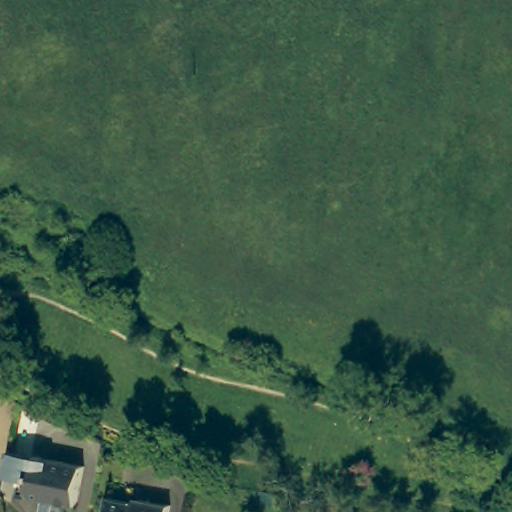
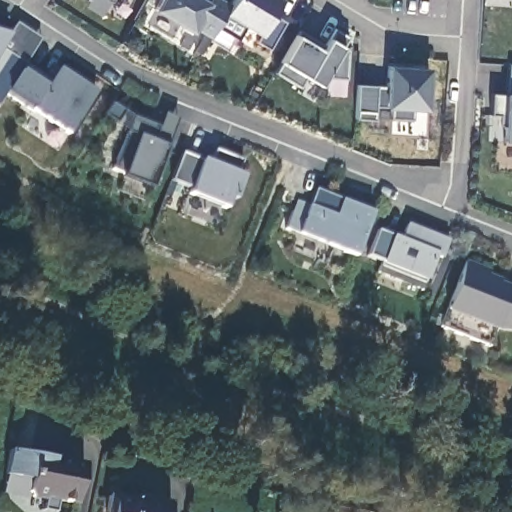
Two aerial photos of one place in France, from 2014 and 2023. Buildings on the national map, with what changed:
new [(112,0),(110,2),(107,0),(112,0)]
new [(208,0),(219,0),(224,3),(227,0),(281,0),(273,14),(285,22),(269,50),(256,42),(260,37),(259,35),(223,14),(208,38),(193,27),(190,33),(152,10),(158,0),(203,0),(207,2),(208,0)]
new [(9,34),(0,46),(51,79),(59,67),(95,92),(67,135),(8,95),(0,102),(0,28),(9,34)]
new [(273,71),(283,65),(279,62),(295,36),(321,51),(327,39),(334,30),(349,39),(341,48),(319,85),(310,79),(299,87),(273,71)]
new [(354,119),(356,85),(375,86),(385,87),(387,65),(428,69),(426,111),(415,110),(411,120),(389,119),(394,108),(385,107),(373,106),(373,119),(354,119)]
new [(504,94),(509,94),(507,65),(512,65),(512,141),(501,141),(504,94)]
new [(120,177),(110,171),(128,134),(125,132),(131,118),(157,128),(163,114),(177,119),(166,147),(150,188),(120,177)]
new [(181,152),(208,163),(214,149),(242,160),(237,174),(243,177),(234,200),(229,198),(225,209),(187,194),(189,189),(169,181),(181,152)]
new [(296,201),(301,202),(308,206),(315,189),(372,212),(355,257),(285,229),(292,211),(296,201)]
new [(439,258),(434,257),(424,282),(421,290),(378,272),(384,266),(379,263),(380,261),(366,256),(376,231),(391,235),(400,240),(406,224),(447,241),(439,258)]
new [(446,312),(465,262),(489,271),(488,275),(501,281),(500,283),(507,286),(512,286),(512,332),(495,331),(446,312)]
unchanged [(31,497),(28,492),(35,456),(83,465),(76,505),(46,498),(45,500),(31,497)]
unchanged [(108,496),(135,502),(136,497),(170,504),(168,512),(105,512),(108,496)]

